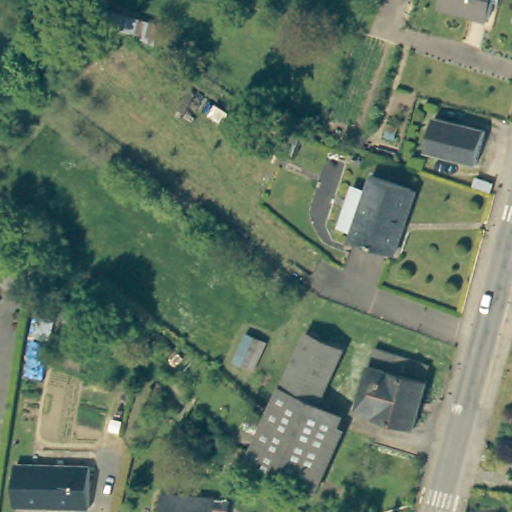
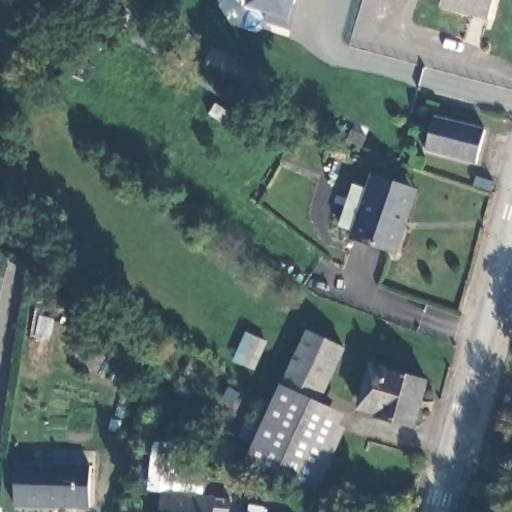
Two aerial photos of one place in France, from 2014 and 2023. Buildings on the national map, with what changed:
new [(295,6),(299,7),(293,30),(265,23),(270,15),(247,8),(249,0),(297,0),(295,6)]
unchanged [(489,22),(438,9),(440,0),(494,0),(489,22)]
unchanged [(486,130),(478,163),(427,150),(436,117),(486,130)]
unchanged [(416,186),(404,226),(398,248),(353,236),(371,173),(407,184),(416,186)]
unchanged [(342,349),(319,407),(278,390),(302,333),(342,349)]
unchanged [(423,378),(427,380),(412,424),(373,413),(374,404),(359,399),(377,345),(392,350),(428,361),(423,378)]
unchanged [(319,407),(343,417),(312,491),(245,465),(269,410),(277,392),(278,390),(319,407)]
unchanged [(93,504),(20,507),(19,465),(91,464),(93,504)]
unchanged [(225,512),(155,512),(155,494),(225,494),(225,512)]

